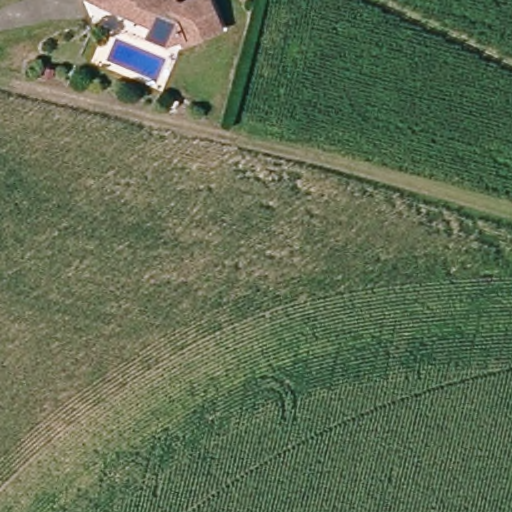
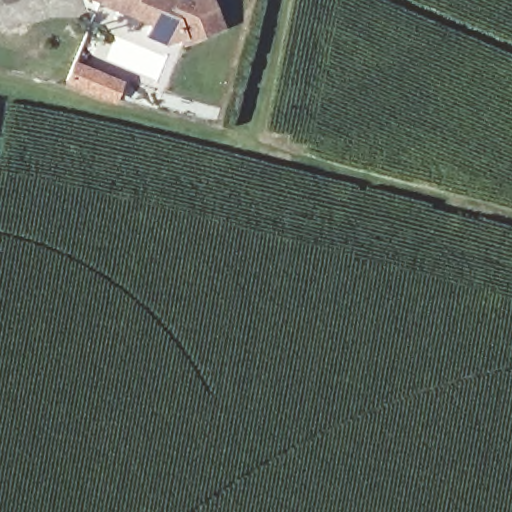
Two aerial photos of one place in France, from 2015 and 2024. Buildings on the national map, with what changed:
unchanged [(102,2),(96,0),(179,0),(181,3),(188,0),(210,0),(222,27),(186,41),(184,35),(169,41),(150,34),(154,23),(142,18),(117,8),(102,2)]
new [(124,80),(114,102),(63,82),(74,60),(124,80)]

